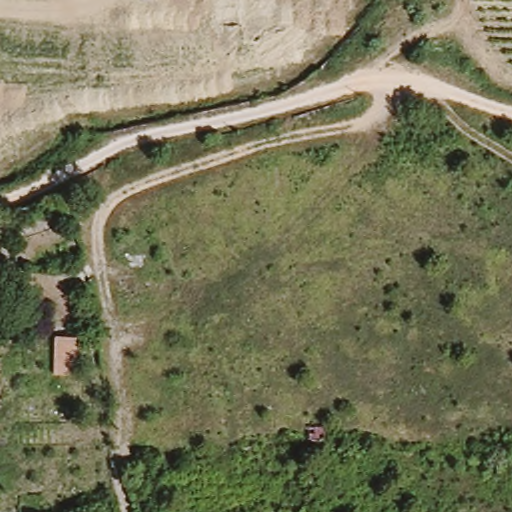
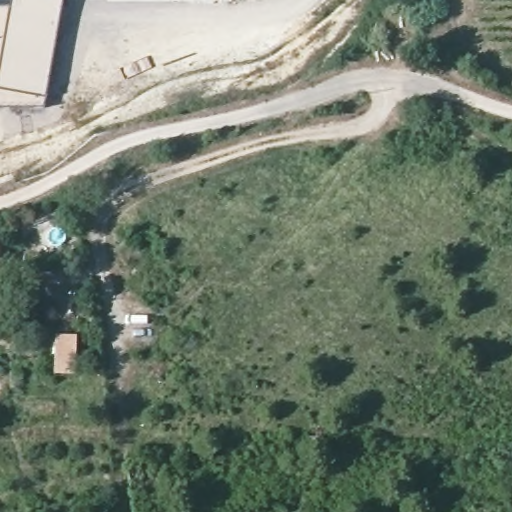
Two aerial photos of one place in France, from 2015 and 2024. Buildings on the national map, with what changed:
new [(12,0),(63,0),(43,106),(0,107),(0,7),(11,6),(12,0)]
unchanged [(71,334),(71,372),(49,371),(50,334),(71,334)]

